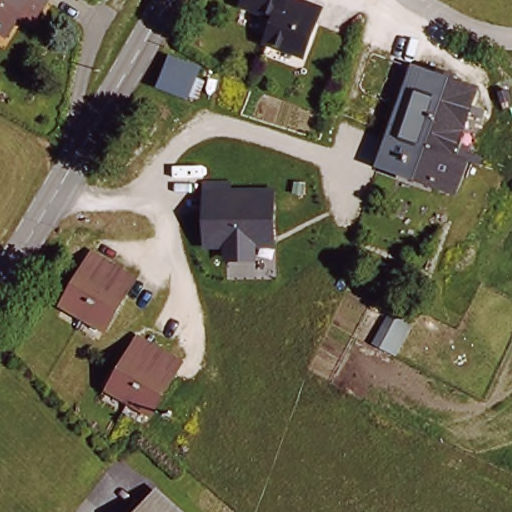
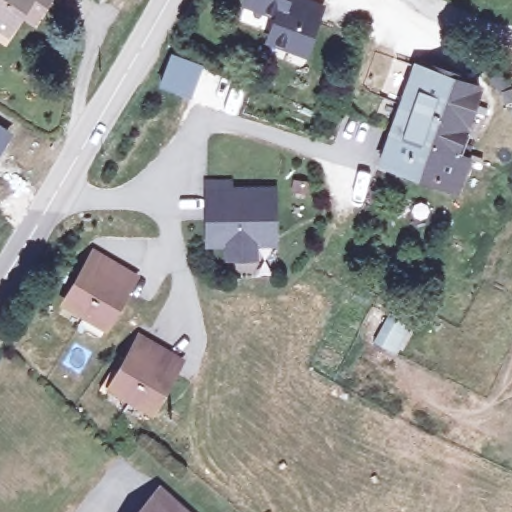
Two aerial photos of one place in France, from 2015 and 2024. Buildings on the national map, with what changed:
unchanged [(16,29),(0,17),(0,0),(56,0),(47,11),(41,20),(29,12),(16,29)]
unchanged [(308,52),(275,39),(283,17),(251,4),(252,0),(307,0),(324,7),(308,52)]
unchanged [(210,63),(202,96),(171,89),(179,55),(210,63)]
unchanged [(480,84),(467,123),(471,125),(461,151),(406,132),(426,66),(480,84)]
new [(15,133),(0,156),(0,123),(15,133)]
unchanged [(475,156),(463,186),(396,163),(406,132),(461,151),(475,156)]
unchanged [(231,179),(231,185),(278,187),(276,244),(259,246),(258,260),(227,259),(227,248),(205,248),(206,180),(231,179)]
unchanged [(67,303),(99,254),(131,274),(141,280),(131,295),(107,330),(67,303)]
unchanged [(147,333),(182,354),(191,360),(183,373),(177,384),(160,412),(155,409),(115,387),(147,333)]
unchanged [(191,512),(153,512),(170,493),(191,512)]

